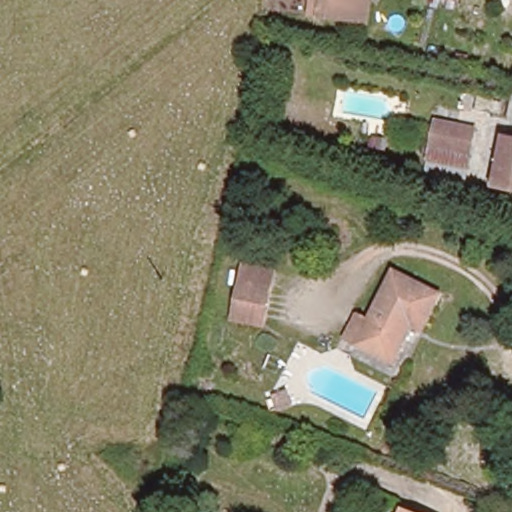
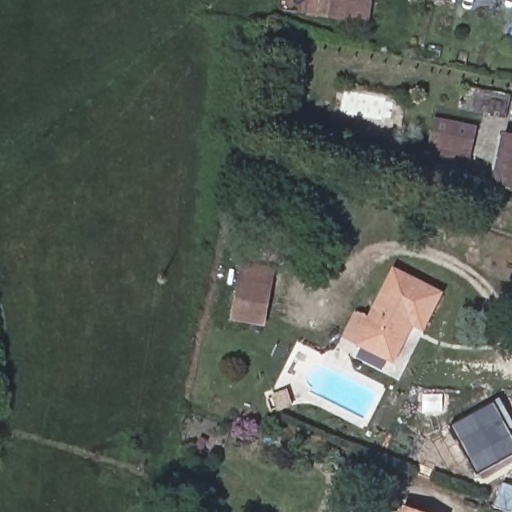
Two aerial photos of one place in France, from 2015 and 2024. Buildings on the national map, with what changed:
unchanged [(364,24),(356,22),(318,17),(305,16),(308,0),(360,0),(359,3),(367,5),(364,24)]
unchanged [(492,186),(502,135),(512,137),(512,190),(492,186)]
unchanged [(471,145),(467,167),(429,161),(433,140),(471,145)]
unchanged [(234,318),(243,278),(245,265),(276,270),(273,284),(266,323),(234,318)]
unchanged [(373,318),(396,269),(442,291),(425,327),(416,323),(400,357),(362,340),(349,334),(359,312),(373,318)]
new [(476,475),(451,427),(493,403),(512,437),(512,455),(476,475)]
unchanged [(419,512),(408,512),(409,508),(419,512)]

